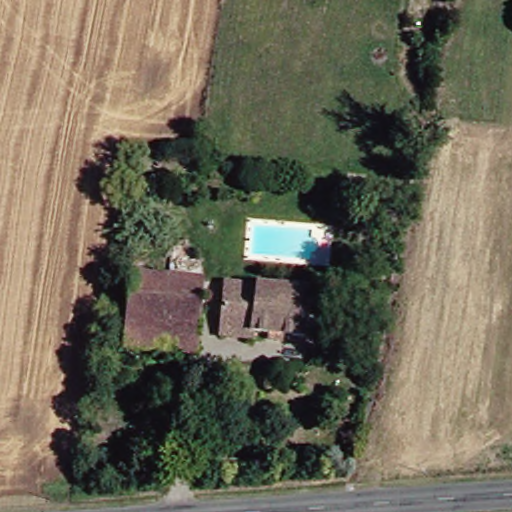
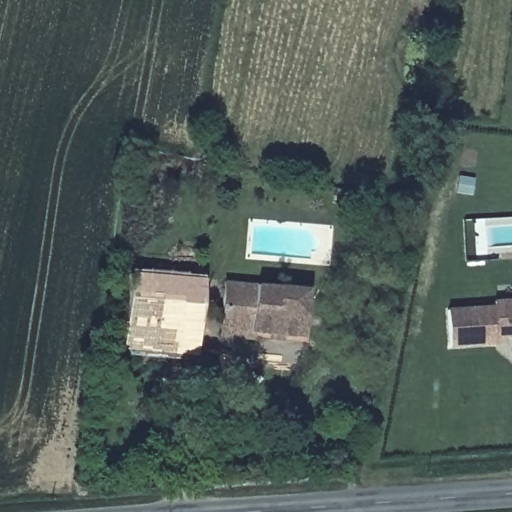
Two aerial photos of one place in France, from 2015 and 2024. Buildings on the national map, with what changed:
unchanged [(132,269),(207,275),(204,324),(129,318),(132,269)]
unchanged [(224,338),(224,330),(225,283),(311,284),(310,332),(283,332),(283,340),(224,338)]
new [(492,335),(493,340),(450,343),(448,312),(475,310),(476,313),(494,312),(494,303),(512,303),(512,334),(492,335)]
unchanged [(127,346),(129,318),(204,324),(202,352),(127,346)]

